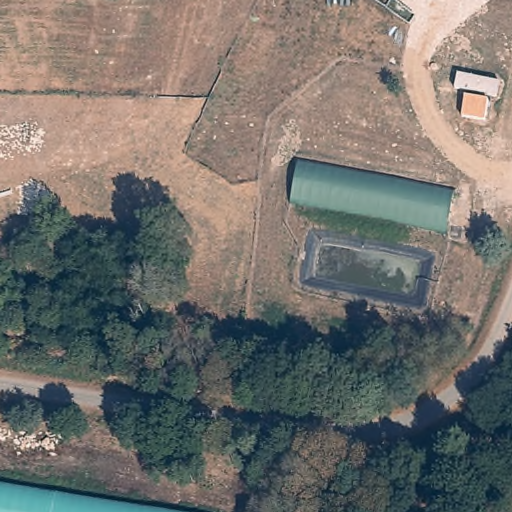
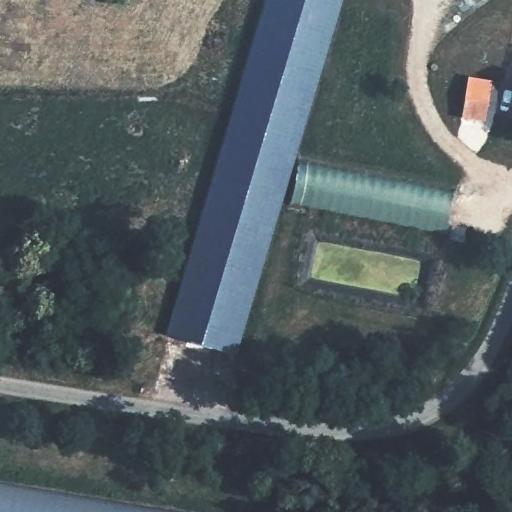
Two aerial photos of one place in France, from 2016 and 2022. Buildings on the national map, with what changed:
new [(343,0),(238,356),(166,334),(267,0),(343,0)]
unchanged [(489,102),(485,125),(460,120),(463,99),(489,102)]
unchanged [(455,189),(448,234),(290,205),(298,159),(455,189)]
unchanged [(175,512),(0,512),(0,483),(175,512)]

